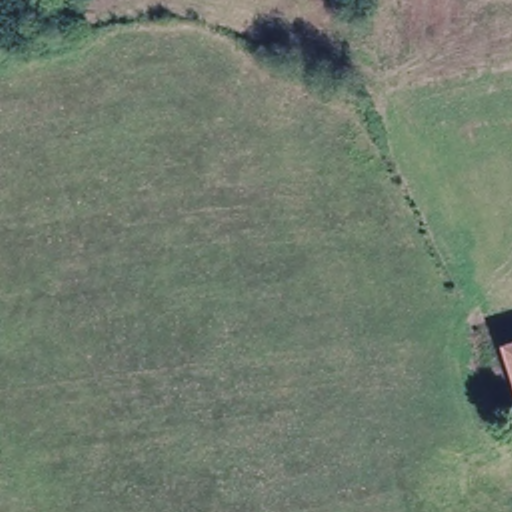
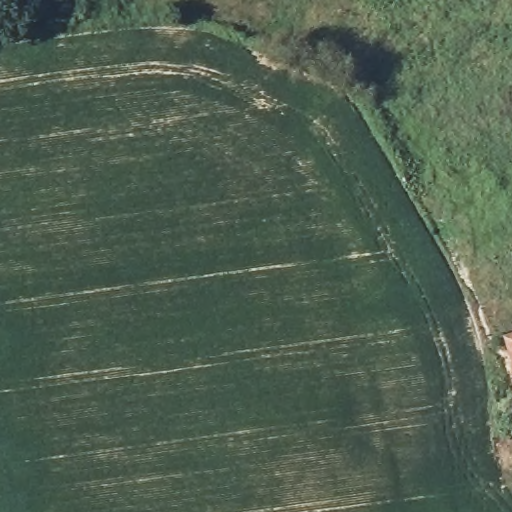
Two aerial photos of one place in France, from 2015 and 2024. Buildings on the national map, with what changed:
unchanged [(501,348),(512,345),(512,385),(501,348)]

